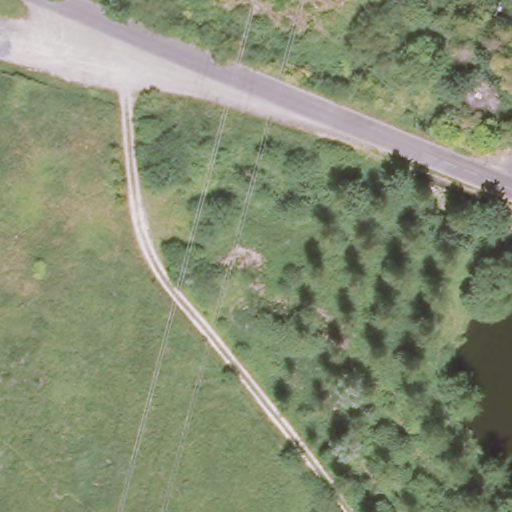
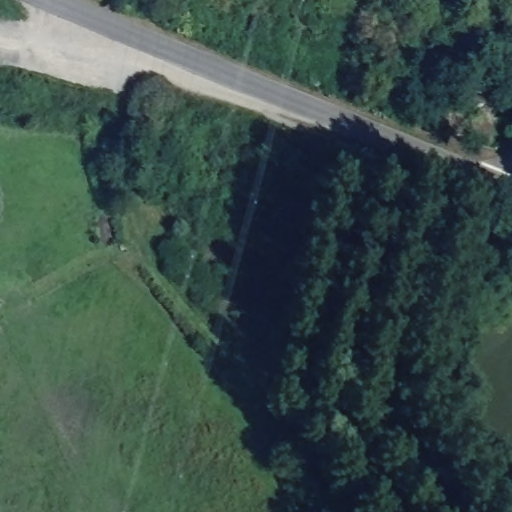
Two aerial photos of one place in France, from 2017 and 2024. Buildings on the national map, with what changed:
unchanged [(458,86),(467,71),(480,69),(490,74),(497,86),(490,101),(462,98),(458,86)]

